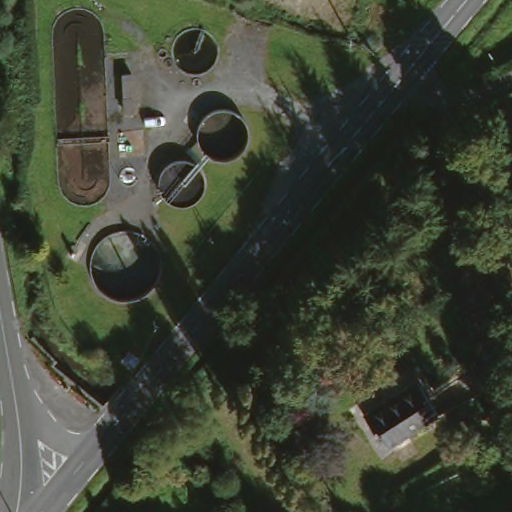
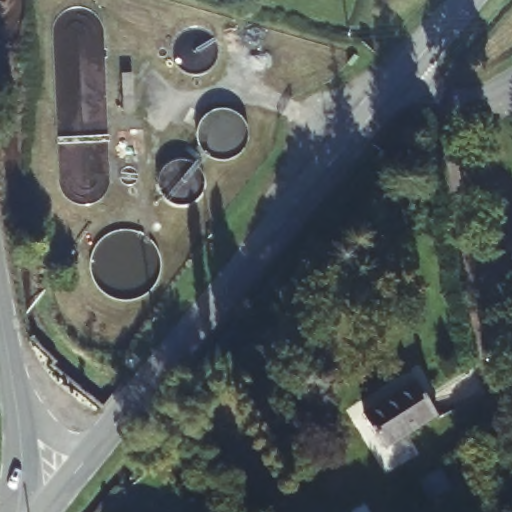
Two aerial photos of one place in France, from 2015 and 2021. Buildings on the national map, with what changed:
unchanged [(438,417),(384,453),(362,417),(417,381),(438,417)]

